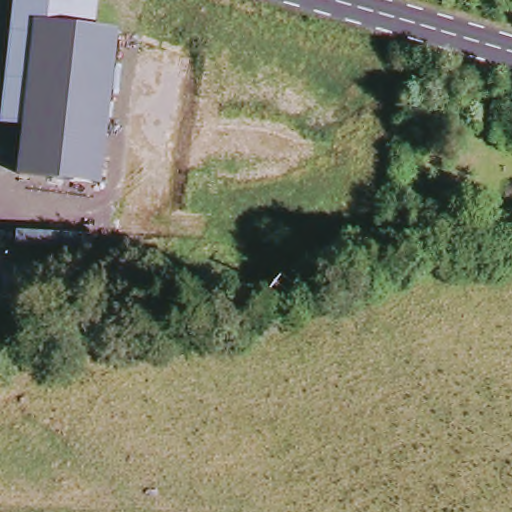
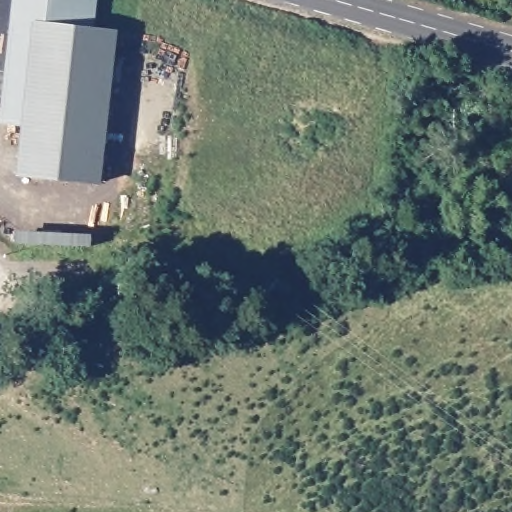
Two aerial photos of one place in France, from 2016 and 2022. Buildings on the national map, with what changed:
unchanged [(96,26),(120,29),(102,184),(15,175),(22,125),(1,123),(13,0),(98,0),(96,26)]

